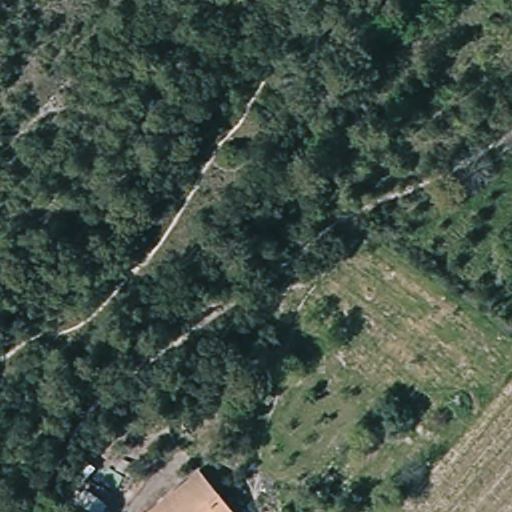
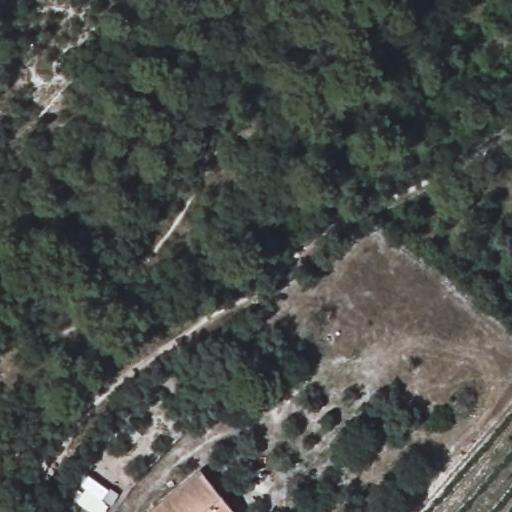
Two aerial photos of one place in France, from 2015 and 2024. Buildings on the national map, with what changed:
unchanged [(236,512),(145,512),(201,467),(236,512)]

